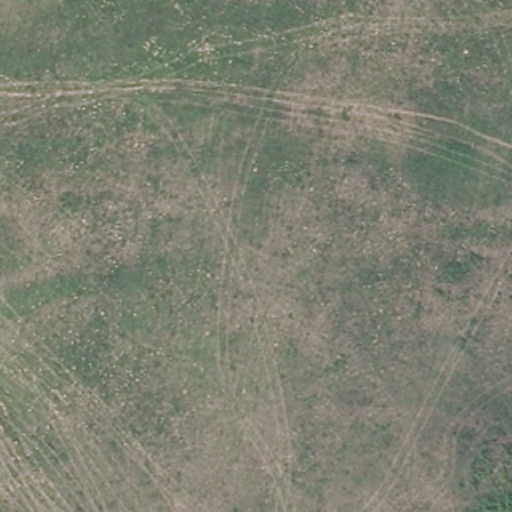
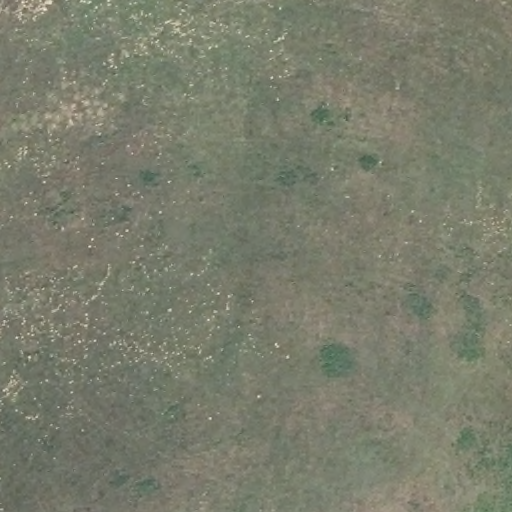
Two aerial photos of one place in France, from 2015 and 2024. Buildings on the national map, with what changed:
[]

